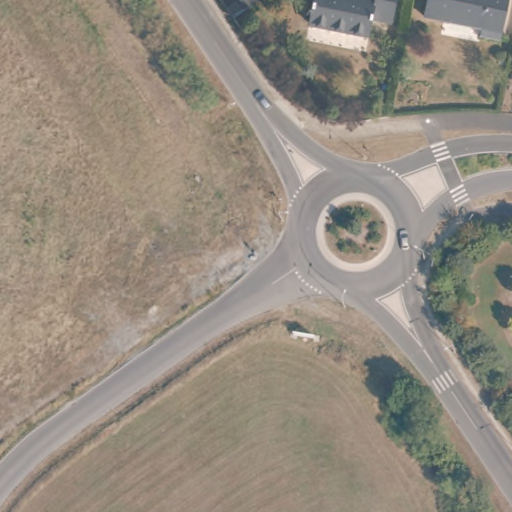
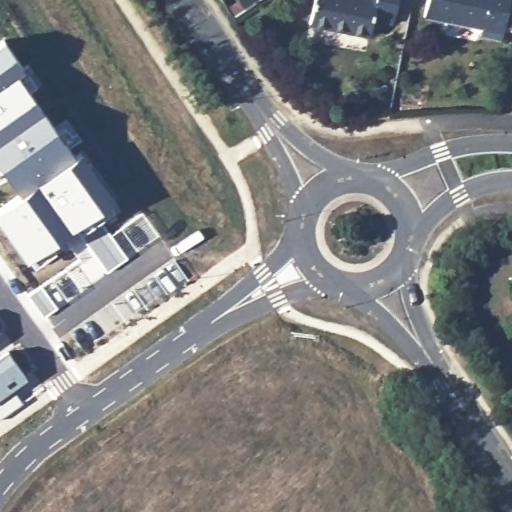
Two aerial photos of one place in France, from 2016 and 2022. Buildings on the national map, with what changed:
unchanged [(375,22),(371,40),(312,27),(318,0),(401,0),(395,27),(375,22)]
unchanged [(480,36),(481,29),(424,17),(428,0),(508,0),(501,40),(480,36)]
new [(73,226),(52,239),(59,250),(34,267),(27,256),(23,258),(0,223),(0,207),(20,194),(0,166),(0,39),(2,38),(23,68),(17,72),(73,155),(80,150),(114,196),(109,199),(115,209),(80,234),(73,226)]
new [(26,377),(11,386),(23,401),(0,418),(0,355),(6,350),(26,377)]

